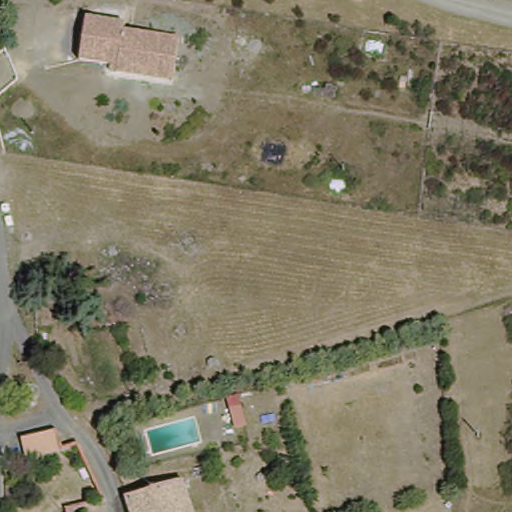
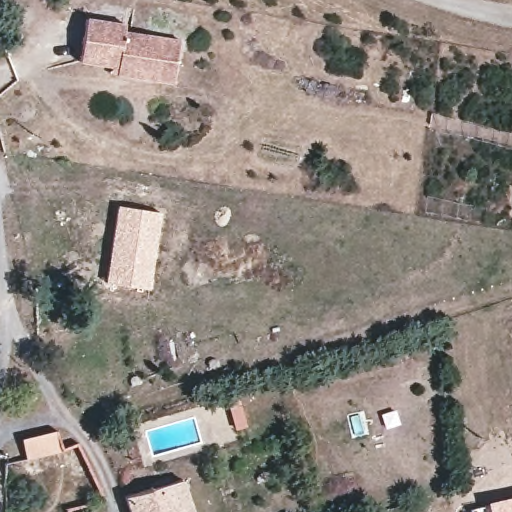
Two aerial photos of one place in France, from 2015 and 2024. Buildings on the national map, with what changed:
unchanged [(90,14),(131,19),(131,28),(187,37),(180,80),(135,74),(137,64),(82,56),(90,14)]
new [(116,204),(160,212),(148,289),(105,281),(116,204)]
unchanged [(20,456),(19,441),(56,434),(75,446),(85,459),(107,504),(83,510),(69,481),(45,484),(25,488),(20,456)]
unchanged [(45,484),(69,481),(83,510),(73,512),(49,512),(45,484)]
unchanged [(133,492),(187,483),(193,512),(138,512),(133,492)]
new [(512,512),(486,512),(485,504),(484,502),(512,496),(512,512)]

